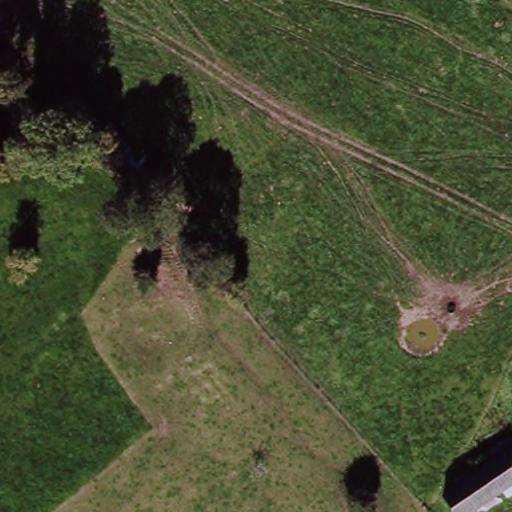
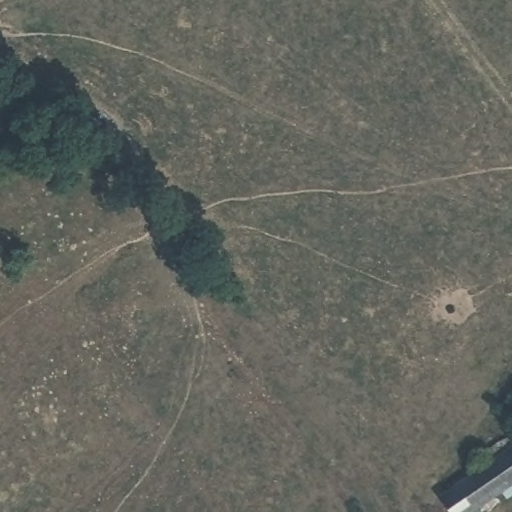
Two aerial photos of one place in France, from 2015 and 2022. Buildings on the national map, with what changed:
unchanged [(474,512),(444,512),(435,500),(512,447),(512,486),(474,512)]

